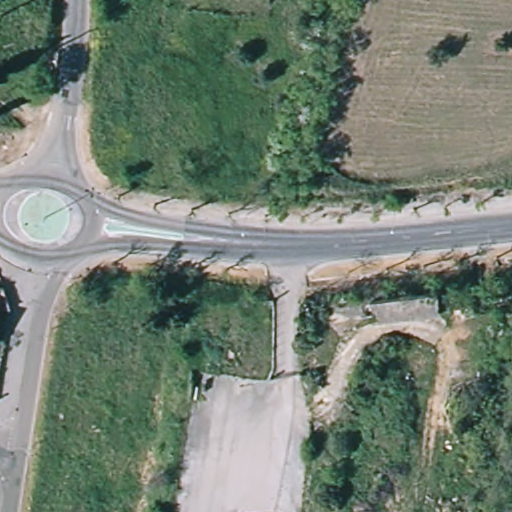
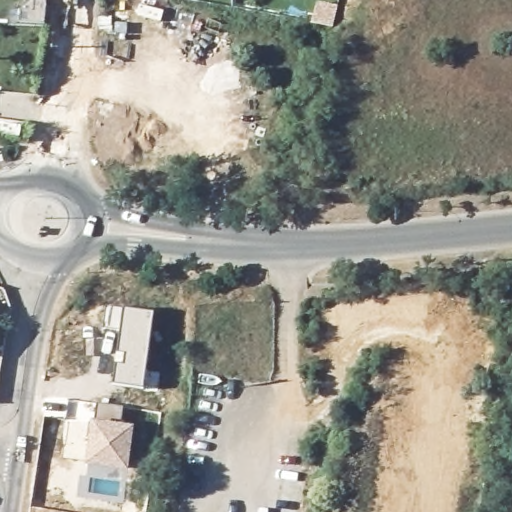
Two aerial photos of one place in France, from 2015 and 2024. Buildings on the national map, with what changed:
new [(41,22),(15,22),(16,9),(29,10),(29,0),(41,0),(41,22)]
unchanged [(437,291),(441,315),(380,321),(370,300),(437,291)]
new [(154,312),(144,390),(112,386),(119,332),(102,330),(106,306),(154,312)]
unchanged [(231,355),(228,371),(217,370),(218,354),(231,355)]
new [(128,470),(85,465),(91,420),(94,420),(97,404),(123,407),(121,424),(133,426),(128,470)]

